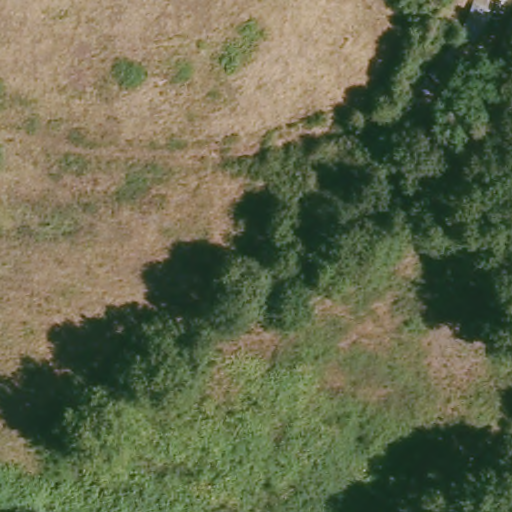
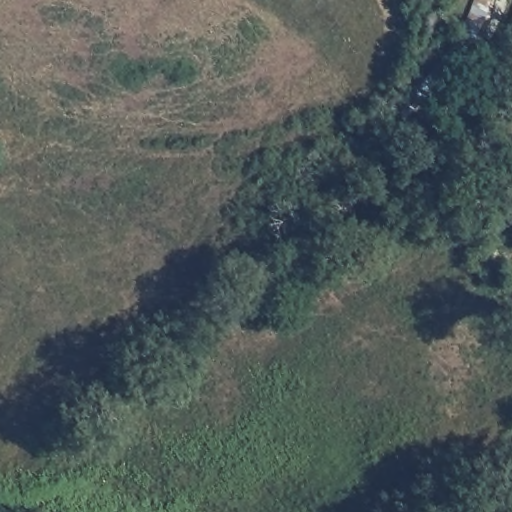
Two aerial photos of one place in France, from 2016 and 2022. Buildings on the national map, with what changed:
unchanged [(455,142),(427,164),(415,148),(442,127),(455,142)]

